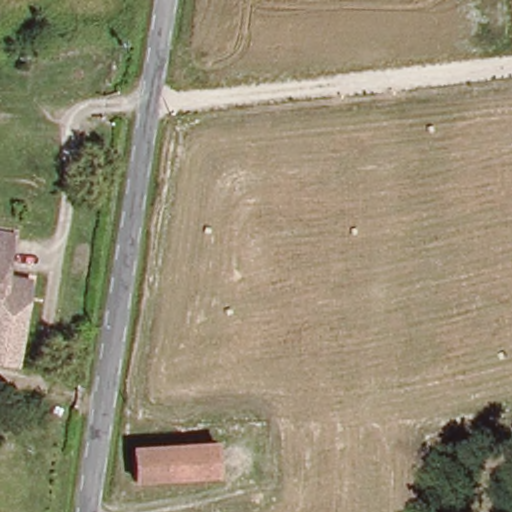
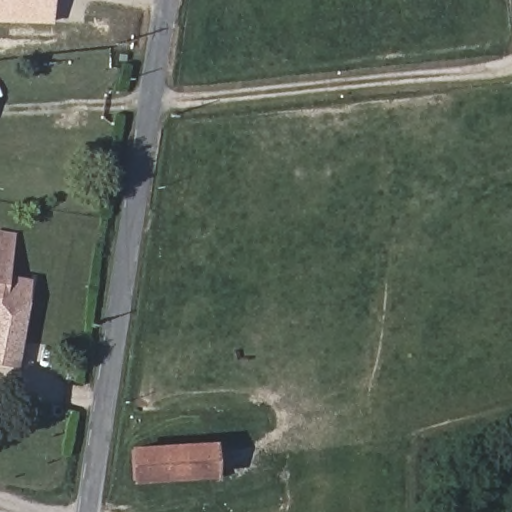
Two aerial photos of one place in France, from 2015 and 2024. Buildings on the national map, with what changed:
new [(0,22),(0,0),(53,0),(52,23),(0,22)]
unchanged [(8,274),(31,277),(19,360),(0,357),(0,230),(14,232),(8,274)]
unchanged [(212,443),(215,476),(135,480),(133,447),(212,443)]

